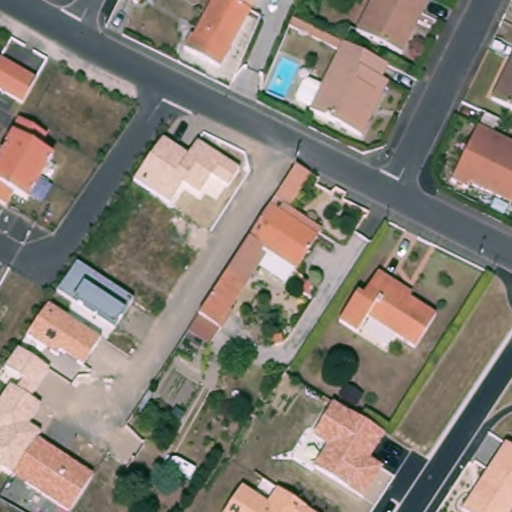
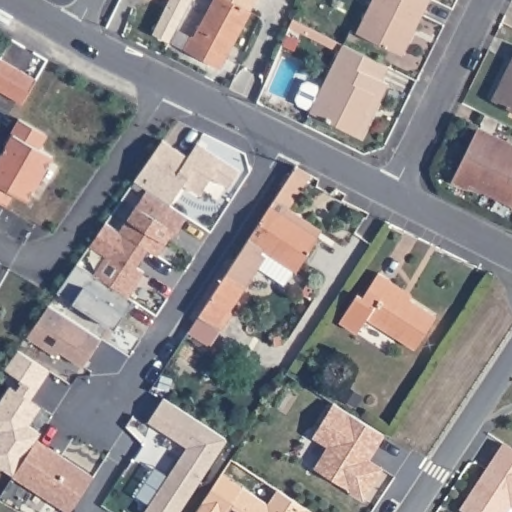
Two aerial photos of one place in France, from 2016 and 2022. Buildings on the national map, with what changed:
unchanged [(137,4),(129,0),(139,0),(137,4)]
unchanged [(222,65),(184,50),(208,0),(254,0),(222,65)]
unchanged [(401,56),(356,34),(373,0),(429,0),(422,16),(411,36),(401,56)]
unchanged [(352,135),(305,113),(339,45),(382,67),(376,79),(382,84),(375,97),(356,137),(352,135)]
unchanged [(22,104),(0,91),(0,60),(35,80),(22,104)]
unchanged [(492,101),(501,82),(510,64),(512,60),(512,111),(492,101)]
unchanged [(50,143),(62,151),(37,196),(24,188),(16,201),(0,192),(0,169),(22,130),(20,128),(29,114),(56,130),(50,143)]
unchanged [(472,128),(512,147),(512,209),(462,186),(460,190),(445,182),(472,128)]
unchanged [(164,139),(189,156),(199,142),(239,170),(227,188),(211,179),(200,196),(183,185),(170,205),(134,182),(164,139)]
unchanged [(295,163),(309,171),(310,172),(288,205),(286,204),(281,212),(316,234),(296,265),(264,244),(241,278),(245,282),(217,322),(199,311),(290,171),(295,163)]
new [(95,275),(105,256),(90,246),(105,222),(120,231),(146,190),(170,205),(187,215),(176,235),(172,232),(161,255),(147,248),(138,265),(145,270),(128,297),(95,275)]
unchanged [(59,292),(78,264),(132,300),(115,331),(59,292)]
unchanged [(356,294),(362,297),(378,274),(411,296),(409,300),(435,317),(415,350),(366,320),(358,332),(340,320),(356,294)]
unchanged [(49,306),(100,342),(82,367),(60,351),(55,357),(26,336),(49,306)]
unchanged [(252,336),(244,330),(249,322),(257,328),(252,336)]
unchanged [(17,390),(24,380),(5,368),(18,349),(50,370),(30,399),(41,406),(29,427),(41,433),(38,439),(94,477),(71,512),(66,512),(13,477),(1,469),(0,471),(0,400),(10,386),(17,390)]
new [(149,421),(163,398),(225,440),(178,512),(146,512),(189,447),(149,421)]
unchanged [(327,446),(313,437),(333,403),(384,435),(368,461),(383,470),(362,500),(315,467),(327,446)]
unchanged [(512,448),(512,510),(510,512),(462,512),(461,512),(506,444),(512,448)]
unchanged [(267,503),(277,489),(310,512),(225,512),(241,487),(267,503)]

